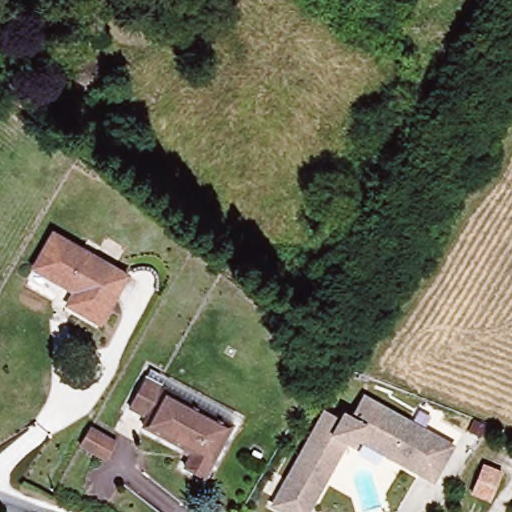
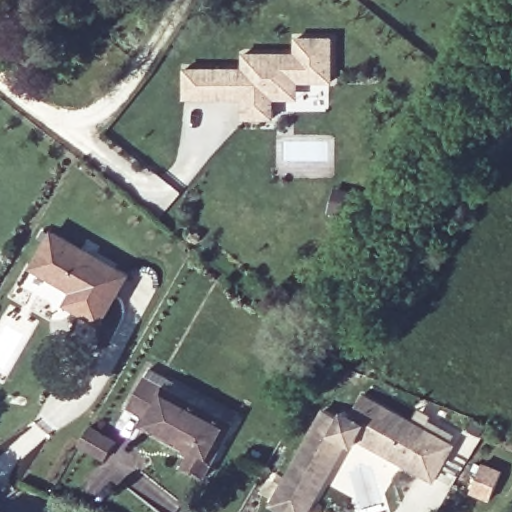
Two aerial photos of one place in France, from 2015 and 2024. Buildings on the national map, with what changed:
new [(244,72),(244,57),(296,56),(295,40),(330,39),(331,82),(273,84),(274,121),(245,121),(244,101),(234,102),(234,72),(244,72)]
new [(219,73),(219,102),(186,102),(185,74),(219,73)]
unchanged [(121,278),(93,326),(60,307),(68,293),(27,271),(49,236),(121,278)]
unchanged [(208,467),(187,457),(194,442),(146,417),(150,408),(131,399),(149,368),(236,415),(208,467)]
unchanged [(434,482),(357,441),(354,447),(347,443),(308,512),(286,512),(271,503),(323,408),(337,416),(340,408),(352,412),(364,393),(455,445),(434,482)]
unchanged [(108,442),(98,460),(74,445),(84,427),(108,442)]
new [(481,465),(500,472),(488,500),(470,492),(481,465)]

